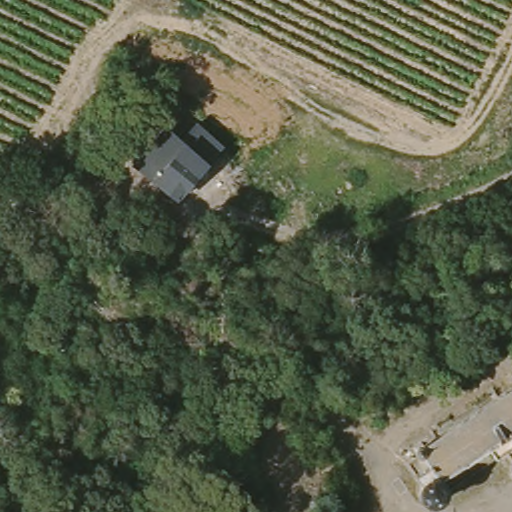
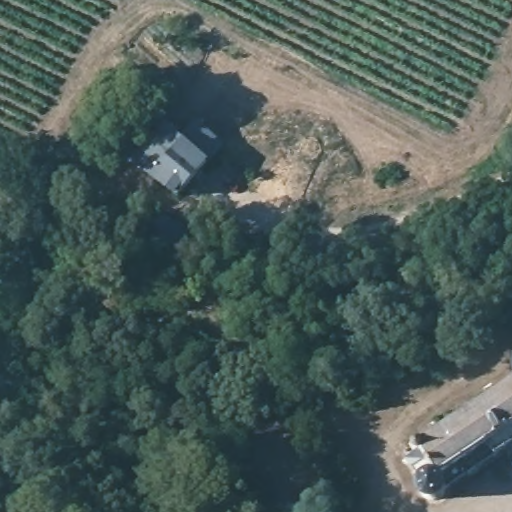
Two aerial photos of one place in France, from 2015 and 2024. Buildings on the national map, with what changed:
unchanged [(149,179),(180,138),(205,159),(174,197),(149,179)]
unchanged [(510,378),(511,374),(512,372),(512,382),(510,378)]
unchanged [(507,449),(495,458),(445,492),(446,493),(446,499),(445,504),(442,508),(437,512),(424,512),(422,511),(418,507),(416,503),(415,498),(417,493),(401,471),(418,461),(413,452),(434,438),(440,434),(445,431),(453,426),(457,423),(460,421),(468,415),(474,411),(480,407),(485,404),(492,398),(512,385),(512,446),(507,449)]

